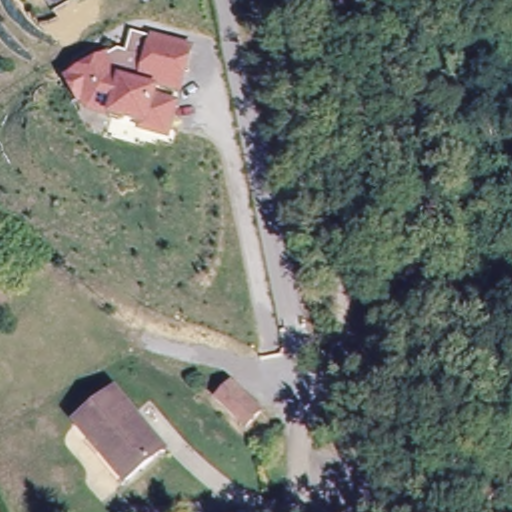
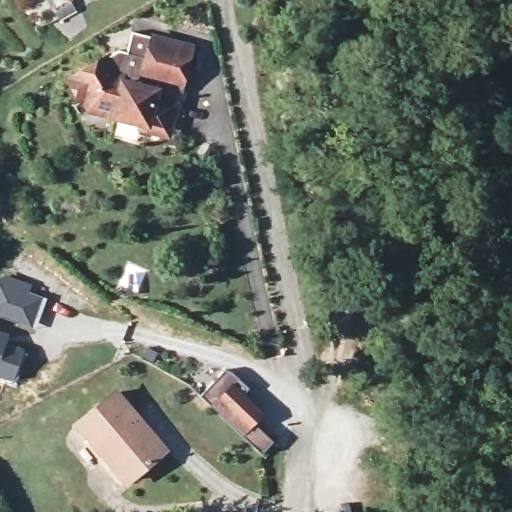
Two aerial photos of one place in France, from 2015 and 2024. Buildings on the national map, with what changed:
unchanged [(157,99),(180,105),(172,137),(148,131),(150,126),(105,115),(94,96),(83,102),(71,81),(122,52),(130,55),(135,34),(157,40),(195,49),(190,70),(184,91),(156,85),(154,93),(157,99)]
new [(31,285),(49,292),(36,322),(17,316),(0,309),(0,271),(31,285)]
new [(1,328),(0,331),(0,328),(1,328)]
new [(2,338),(27,346),(17,373),(0,366),(0,333),(2,338)]
unchanged [(219,398),(231,387),(256,417),(245,429),(219,398)]
unchanged [(163,446),(127,477),(83,426),(119,396),(163,446)]

